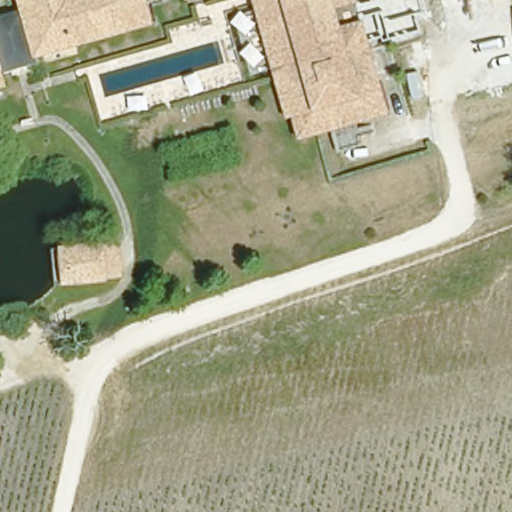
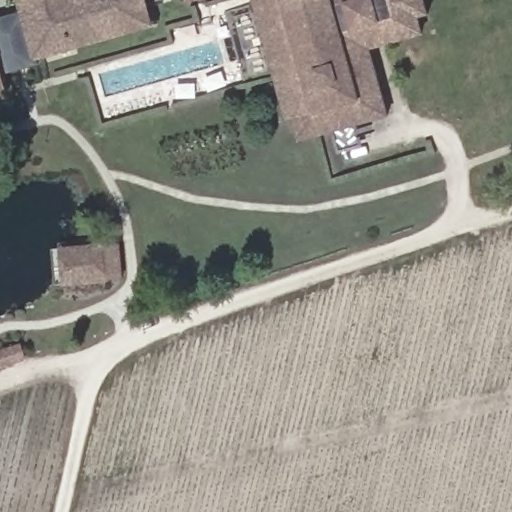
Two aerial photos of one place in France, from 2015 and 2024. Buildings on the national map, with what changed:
unchanged [(18,0),(149,0),(144,23),(142,23),(73,43),(34,54),(35,60),(2,68),(5,86),(0,87),(0,14),(21,8),(18,0)]
unchanged [(333,143),(330,126),(297,134),(292,113),(285,114),(273,70),(271,64),(256,6),(254,0),(354,0),(356,5),(357,12),(359,18),(367,48),(385,111),(352,119),(355,138),(333,143)]
new [(430,13),(419,16),(423,34),(367,48),(359,18),(357,12),(356,5),(354,0),(426,0),(430,13)]
unchanged [(68,244),(77,243),(101,241),(112,239),(112,257),(112,274),(107,274),(93,276),(78,278),(70,280),(68,244)]

